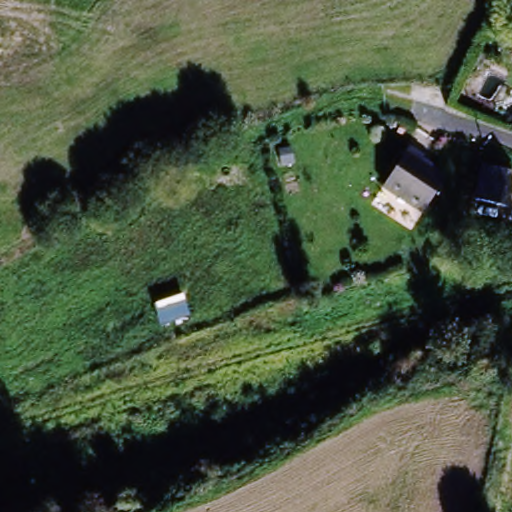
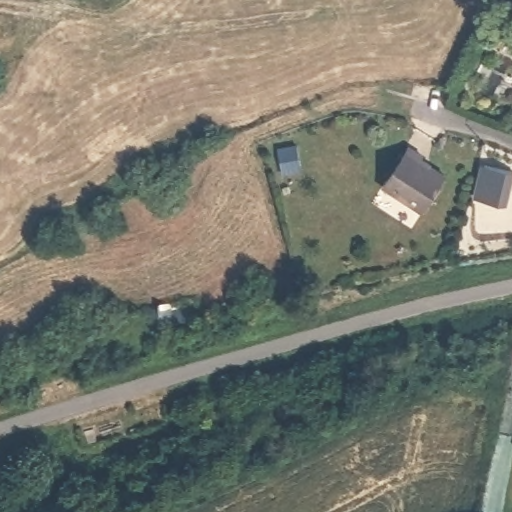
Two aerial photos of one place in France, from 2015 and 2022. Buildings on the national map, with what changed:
unchanged [(389,192),(412,155),(426,165),(424,167),(446,181),(425,215),(389,192)]

